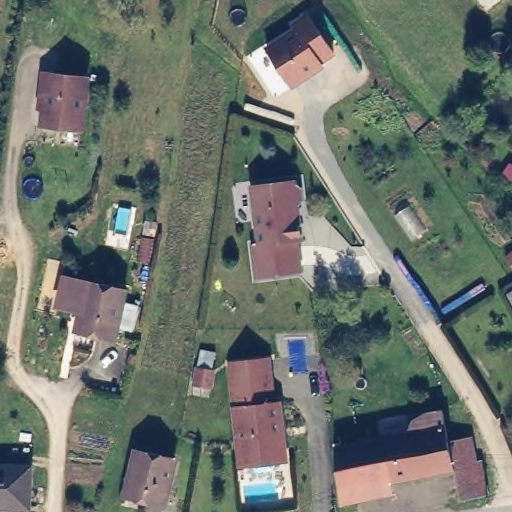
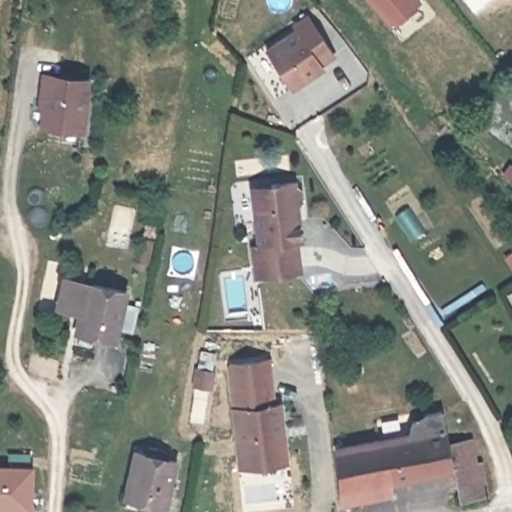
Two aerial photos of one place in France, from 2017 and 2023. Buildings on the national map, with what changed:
new [(367,0),(421,0),(421,1),(390,27),(367,0)]
unchanged [(335,55),(320,66),(323,71),(293,91),(265,47),(295,26),(292,23),(308,12),(335,55)]
unchanged [(90,76),(86,134),(40,128),(41,108),(38,108),(42,72),(90,76)]
unchanged [(290,183),(299,187),(305,239),(298,240),(301,275),(252,278),(250,244),(255,244),(250,187),(290,183)]
unchanged [(117,287),(108,337),(69,330),(78,280),(117,287)]
unchanged [(226,362),(265,356),(271,401),(277,400),(282,438),(285,457),(240,463),(237,438),(226,362)]
unchanged [(183,377),(199,379),(197,395),(181,393),(183,377)]
unchanged [(339,454),(411,437),(415,423),(428,421),(427,416),(445,412),(448,429),(452,446),(458,471),(360,493),(361,507),(348,508),(346,508),(341,466),(339,454)]
unchanged [(473,442),(479,466),(484,465),(491,494),(465,500),(458,471),(452,446),(473,442)]
unchanged [(113,489),(115,474),(117,466),(120,450),(160,458),(159,464),(158,468),(150,504),(132,500),(111,496),(113,489)]
unchanged [(0,473),(33,472),(35,512),(0,512),(0,473)]

